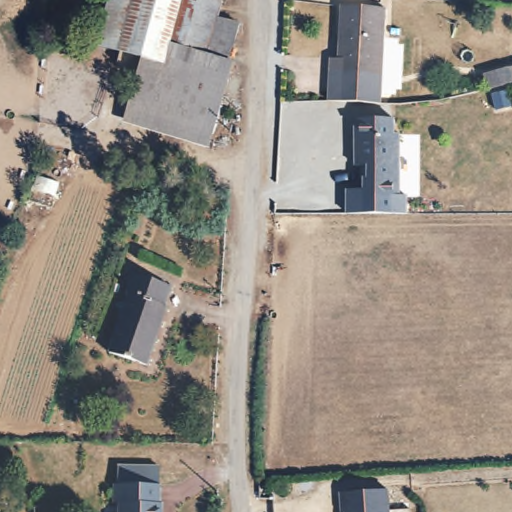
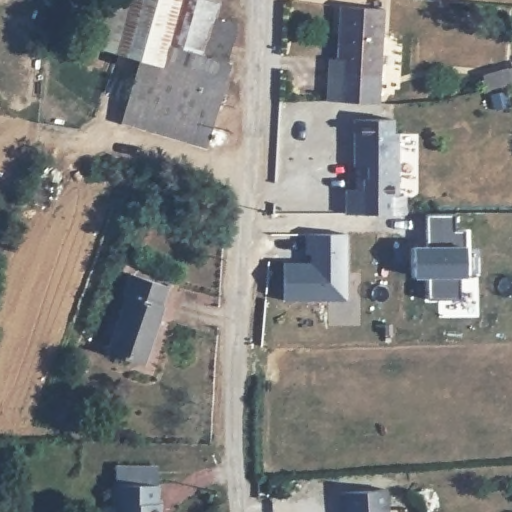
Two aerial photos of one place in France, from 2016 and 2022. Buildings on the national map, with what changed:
unchanged [(224,65),(229,68),(206,143),(121,121),(138,62),(93,49),(106,0),(196,0),(217,6),(212,23),(234,30),(232,40),(224,65)]
unchanged [(196,0),(219,0),(217,6),(196,0)]
unchanged [(330,100),(331,59),(340,58),(343,8),(386,9),(382,102),(330,100)]
unchanged [(512,67),(512,80),(490,86),(487,74),(512,67)]
unchanged [(407,199),(407,212),(348,213),(349,190),(367,189),(368,180),(371,180),(371,165),(357,165),(359,119),(393,120),(394,135),(401,136),(397,197),(407,199)]
new [(428,277),(415,277),(414,248),(427,248),(427,214),(455,215),(455,230),(467,230),(466,277),(462,277),(462,301),(427,300),(428,277)]
new [(284,263),(306,263),(306,234),(346,234),(347,301),(284,302),(284,263)]
unchanged [(111,351),(131,293),(126,291),(133,273),(170,285),(164,306),(168,307),(147,364),(111,351)]
unchanged [(162,502),(162,512),(120,512),(121,501),(115,501),(115,482),(116,463),(161,464),(160,484),(159,502),(162,502)]
unchanged [(347,512),(342,512),(341,492),(387,489),(389,512),(347,512)]

